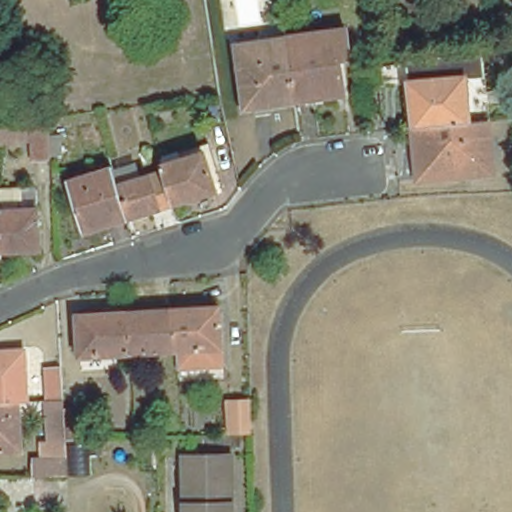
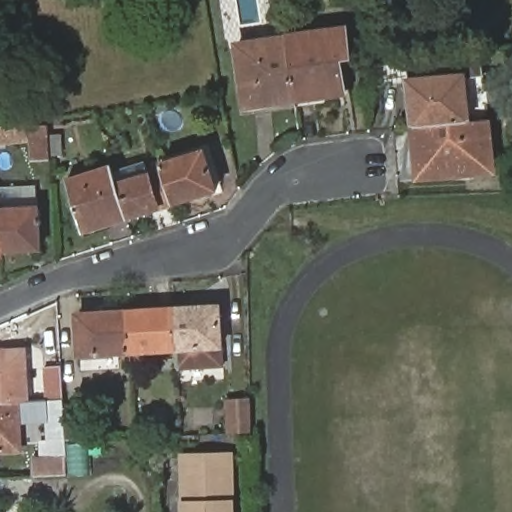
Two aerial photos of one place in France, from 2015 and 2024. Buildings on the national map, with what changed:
unchanged [(341,27),(344,49),(334,51),(339,92),(290,99),(284,44),(283,37),(283,35),(341,27)]
unchanged [(284,44),(290,99),(242,104),(234,42),(283,37),(284,44)]
unchanged [(487,126),(471,127),(413,134),(411,135),(404,70),(406,70),(443,64),(480,59),(487,126)]
unchanged [(494,179),(474,181),(473,173),(418,179),(413,134),(471,127),(487,126),(489,126),(494,179)]
unchanged [(48,159),(31,160),(30,143),(0,145),(0,129),(29,127),(45,127),(46,137),(59,136),(60,159),(48,159)]
unchanged [(208,152),(219,190),(175,204),(165,172),(163,166),(208,152)]
unchanged [(120,186),(131,218),(84,232),(69,184),(115,170),(120,186)]
unchanged [(131,218),(120,186),(165,172),(175,204),(131,218)]
unchanged [(34,200),(34,215),(38,255),(0,257),(0,192),(30,191),(34,200)]
unchanged [(178,311),(222,310),(223,352),(224,367),(180,369),(179,353),(178,311)]
unchanged [(130,312),(178,311),(179,353),(132,355),(130,312)]
unchanged [(81,356),(79,315),(130,312),(132,355),(81,356)]
unchanged [(0,399),(0,352),(23,351),(24,397),(10,398),(0,399)]
unchanged [(31,458),(40,458),(39,438),(47,437),(45,397),(43,366),(58,366),(59,396),(60,407),(79,406),(81,437),(62,437),(64,476),(32,477),(31,458)]
unchanged [(11,408),(13,447),(0,448),(0,399),(10,398),(11,408)]
unchanged [(226,432),(225,402),(245,402),(247,432),(226,432)]
unchanged [(230,457),(232,512),(185,512),(184,458),(230,457)]

